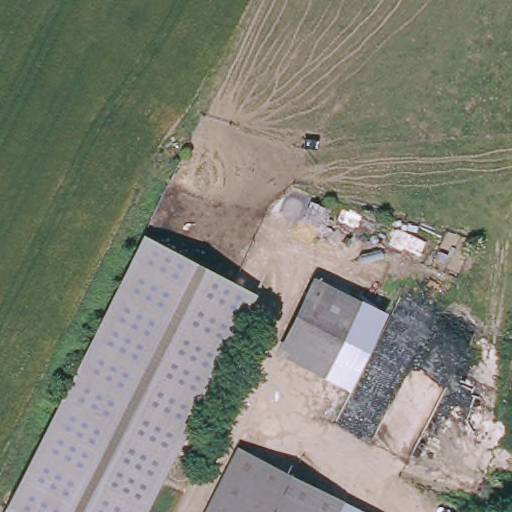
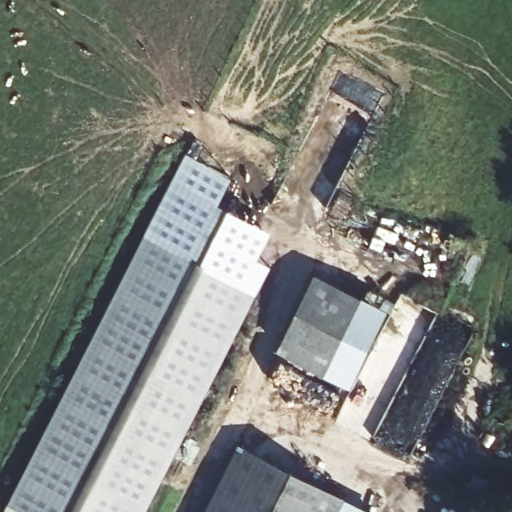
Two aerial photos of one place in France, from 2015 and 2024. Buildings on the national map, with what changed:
new [(232,177),(219,204),(271,232),(258,257),(269,264),(257,289),(144,235),(187,155),(232,177)]
unchanged [(144,512),(4,512),(7,506),(144,235),(257,289),(144,512)]
unchanged [(276,347),(317,275),(384,310),(344,382),(276,347)]
unchanged [(372,512),(206,512),(241,445),(372,512)]

